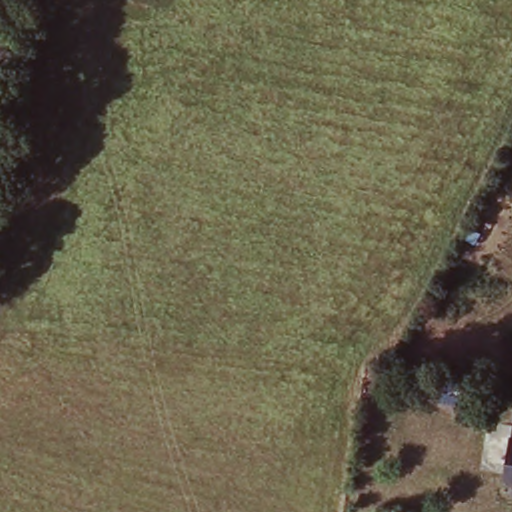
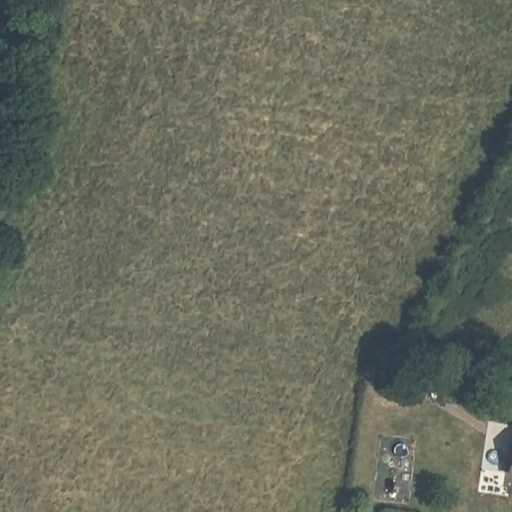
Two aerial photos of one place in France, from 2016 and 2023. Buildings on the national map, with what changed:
unchanged [(512,435),(512,479),(503,478),(511,435),(512,435)]

